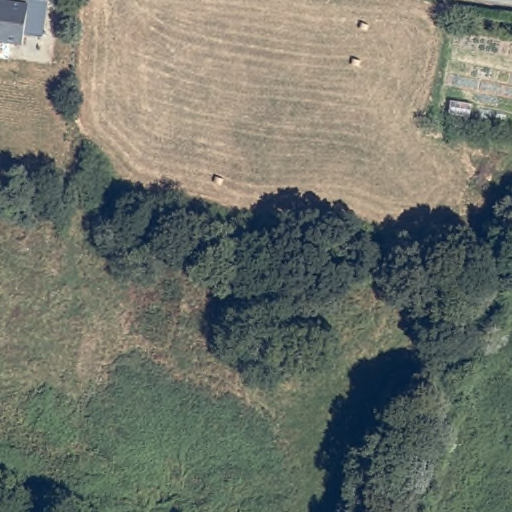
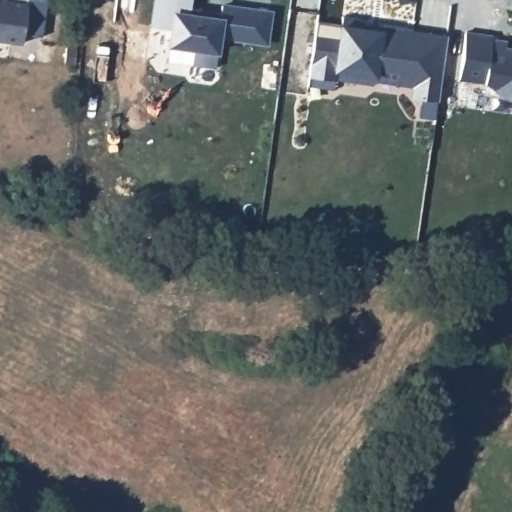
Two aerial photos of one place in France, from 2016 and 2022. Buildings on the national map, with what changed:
unchanged [(25,37),(24,47),(0,43),(0,0),(49,0),(43,32),(25,37)]
new [(213,69),(192,66),(195,47),(170,44),(172,30),(151,27),(155,0),(190,0),(189,10),(200,12),(199,17),(221,21),(223,7),(255,12),(250,40),(217,36),(213,69)]
new [(438,100),(410,97),(412,87),(375,81),(375,84),(335,79),(334,89),(308,85),(318,24),(340,27),(341,25),(342,17),(360,19),(360,23),(448,35),(438,100)]
new [(491,37),(491,40),(506,42),(505,47),(512,48),(512,100),(483,97),(485,84),(460,81),(466,34),(491,37)]

